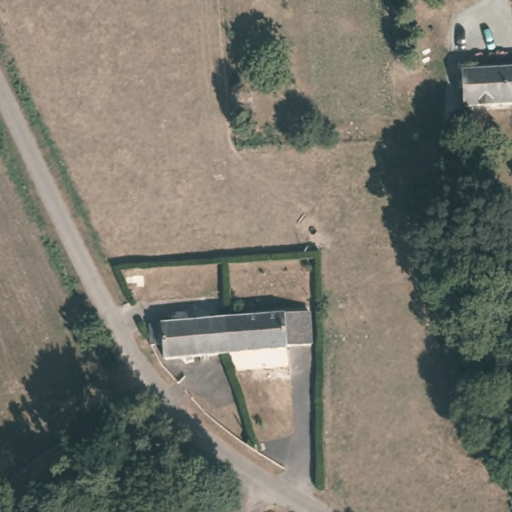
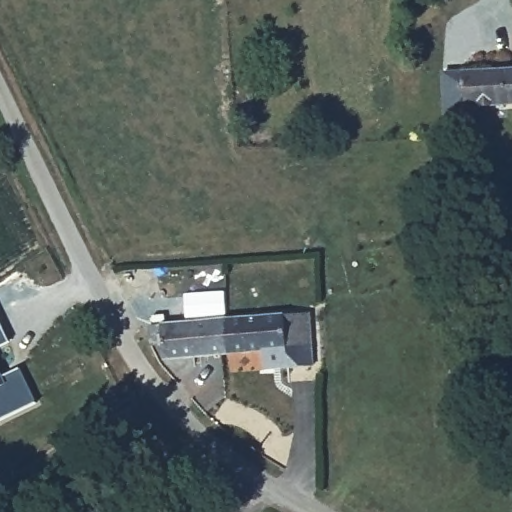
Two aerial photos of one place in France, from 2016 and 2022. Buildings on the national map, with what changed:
unchanged [(462,108),(461,74),(512,70),(512,105),(462,108)]
unchanged [(298,316),(301,344),(281,346),(279,352),(241,355),(239,320),(298,316)]
unchanged [(186,324),(239,320),(241,355),(188,359),(186,324)]
unchanged [(155,362),(154,346),(141,347),(140,328),(186,324),(188,359),(155,362)]
new [(0,325),(8,341),(0,345),(0,325)]
new [(21,367),(38,402),(0,419),(0,371),(2,376),(21,367)]

